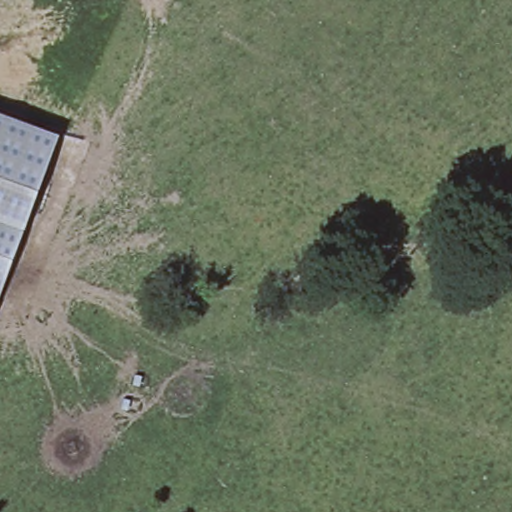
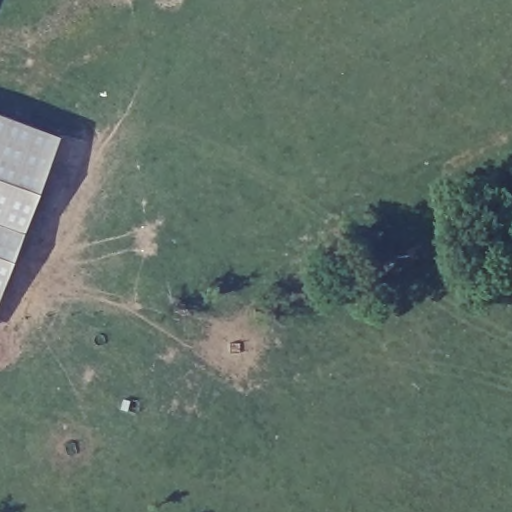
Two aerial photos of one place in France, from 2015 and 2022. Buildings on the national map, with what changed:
unchanged [(60,134),(3,290),(0,289),(0,113),(60,134)]

